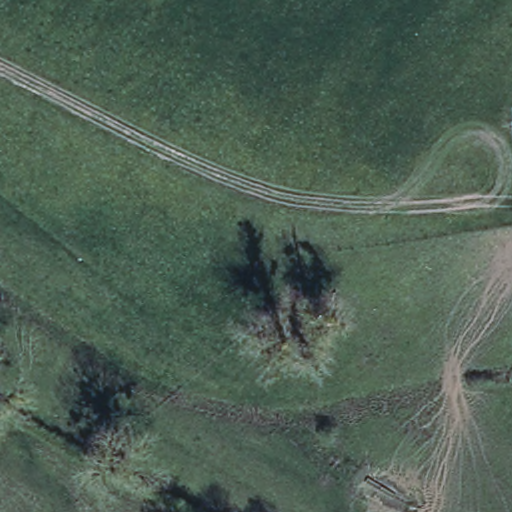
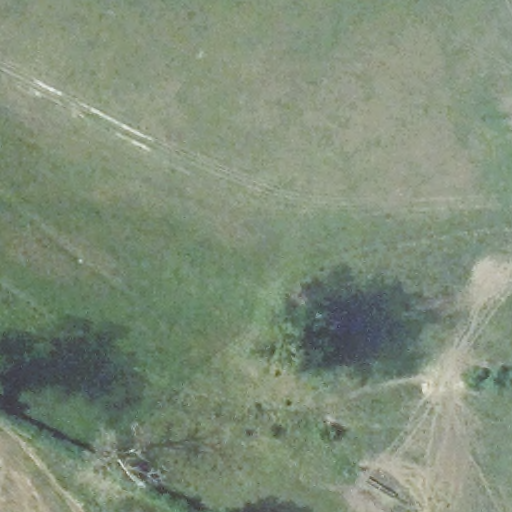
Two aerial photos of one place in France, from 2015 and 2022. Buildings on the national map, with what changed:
[]

